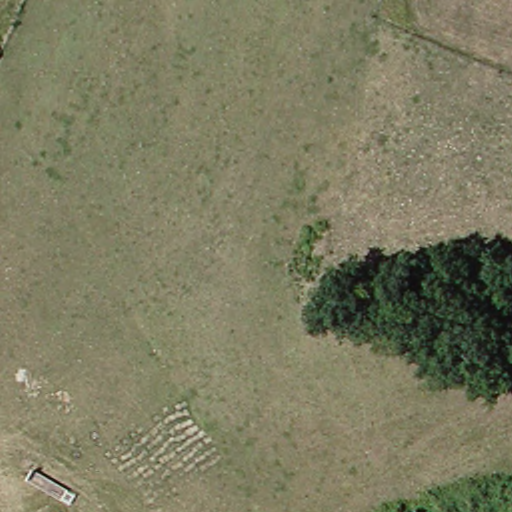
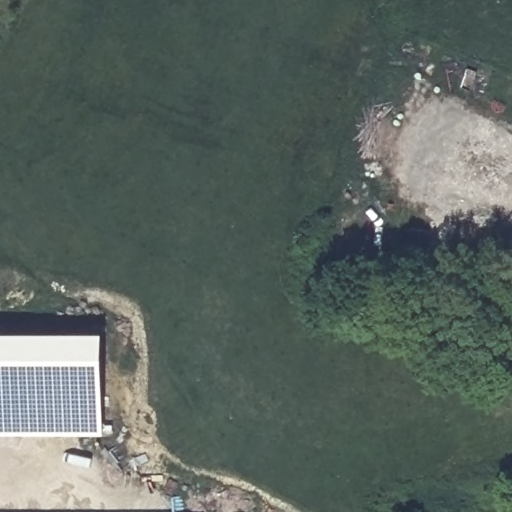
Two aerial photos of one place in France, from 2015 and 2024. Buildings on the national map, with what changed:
new [(0,440),(0,337),(103,338),(102,441),(0,440)]

